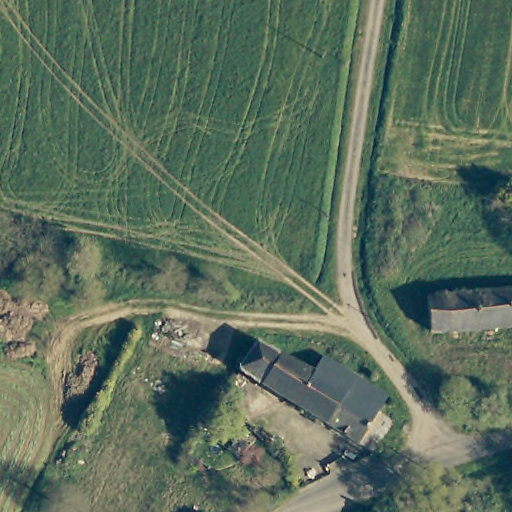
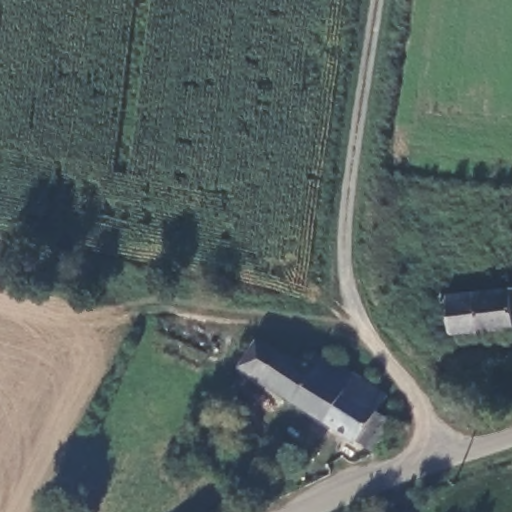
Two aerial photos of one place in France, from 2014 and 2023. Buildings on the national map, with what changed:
unchanged [(512,291),(512,326),(476,330),(472,295),(512,291)]
unchanged [(429,336),(425,300),(472,295),(476,330),(429,336)]
unchanged [(234,377),(251,349),(304,382),(314,366),(380,405),(372,418),(387,429),(370,458),(234,377)]

